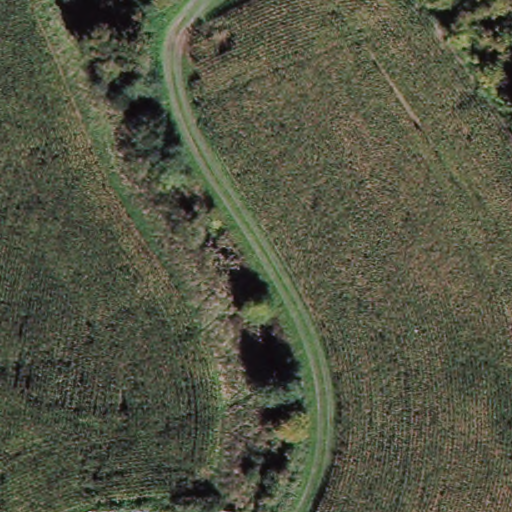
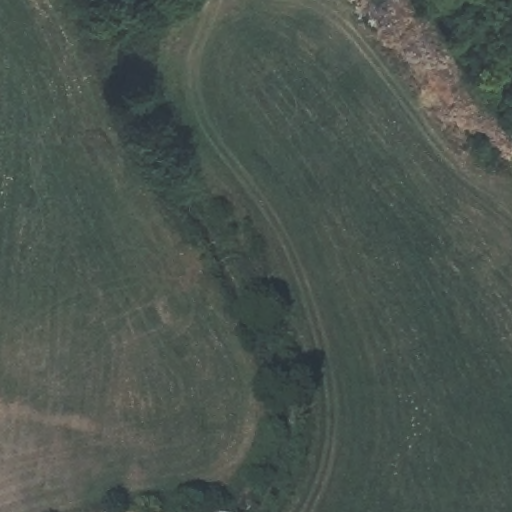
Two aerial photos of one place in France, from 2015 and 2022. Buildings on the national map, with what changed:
unchanged [(231,512),(208,512),(208,506),(231,506),(231,512)]

